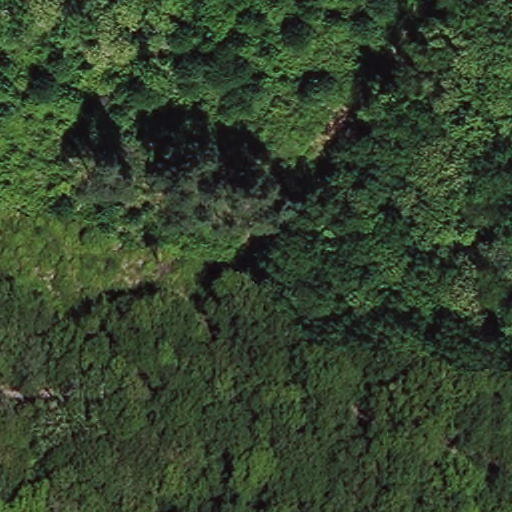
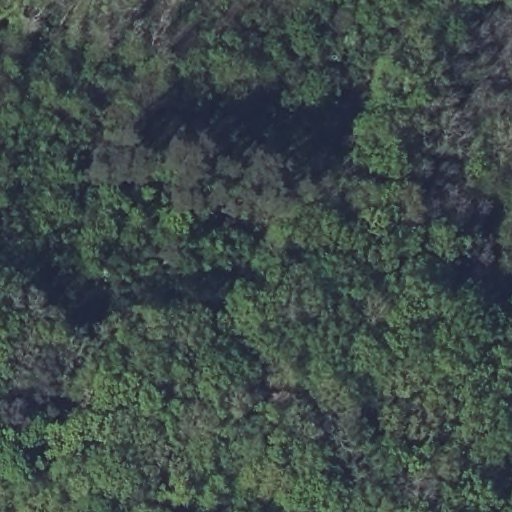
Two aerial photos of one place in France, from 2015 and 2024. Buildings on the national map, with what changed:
unchanged [(34,454),(21,449),(16,463),(0,456),(0,428),(36,442),(34,454)]

